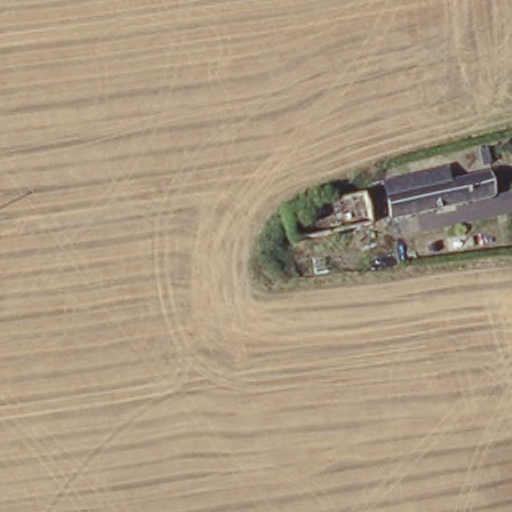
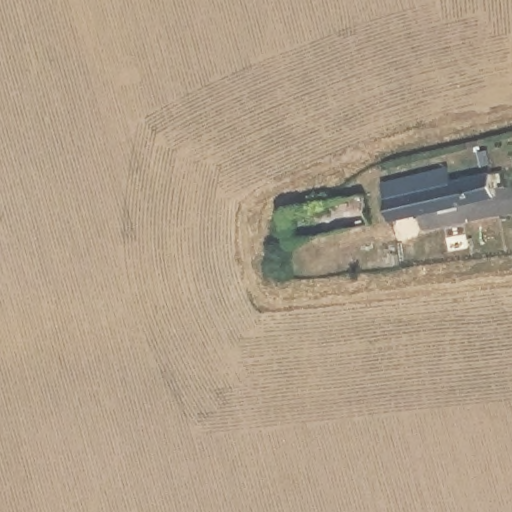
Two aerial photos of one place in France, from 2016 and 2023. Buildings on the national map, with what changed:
unchanged [(415,183),(415,179),(443,171),(446,187),(489,177),(495,202),(386,226),(379,191),(415,183)]

